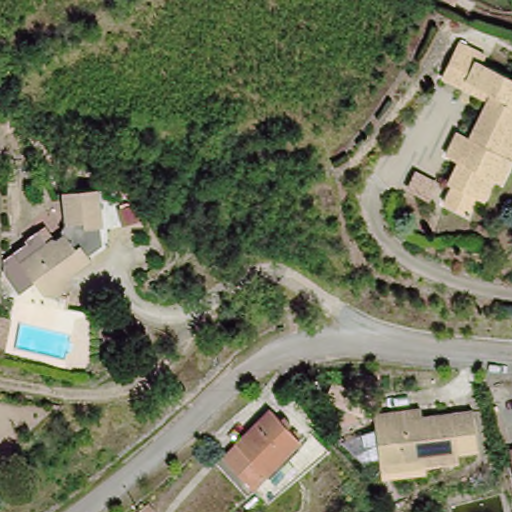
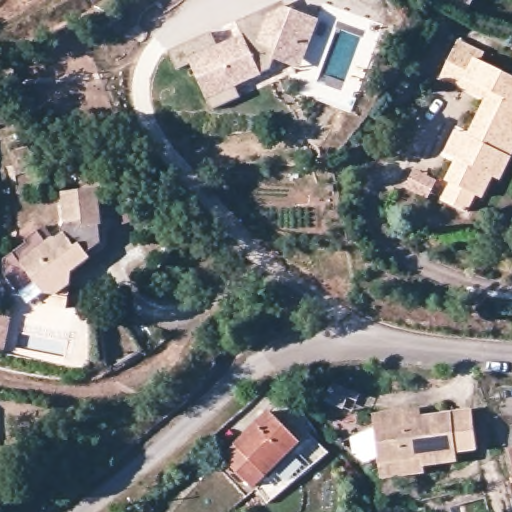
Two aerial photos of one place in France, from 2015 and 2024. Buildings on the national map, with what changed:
new [(212,33),(217,46),(243,35),(238,22),(285,1),(287,7),(320,20),(302,69),(275,59),(272,70),(262,74),(263,76),(237,87),(241,97),(214,110),(191,61),(177,68),(170,51),(212,33)]
unchanged [(445,189),(457,160),(442,153),(449,129),(467,135),(485,96),(444,71),(461,35),(486,44),(481,55),(512,75),(512,160),(490,201),(477,197),(467,215),(438,204),(445,189)]
unchanged [(50,306),(50,292),(44,286),(36,278),(25,266),(47,244),(66,234),(63,230),(72,223),(63,192),(100,187),(105,218),(101,219),(105,241),(95,250),(96,254),(77,268),(75,306),(50,306)]
unchanged [(18,292),(1,271),(0,260),(34,232),(47,244),(25,266),(36,278),(18,292)]
unchanged [(0,348),(0,317),(9,319),(3,348),(0,348)]
new [(318,399),(324,382),(362,395),(356,411),(318,399)]
unchanged [(383,460),(376,413),(411,406),(420,405),(422,412),(470,404),(476,445),(457,448),(457,460),(442,462),(420,466),(385,470),(383,460)]
unchanged [(267,481),(261,471),(246,479),(224,445),(280,411),(305,449),(310,455),(267,481)]
unchanged [(512,454),(512,466),(508,455),(512,454)]

